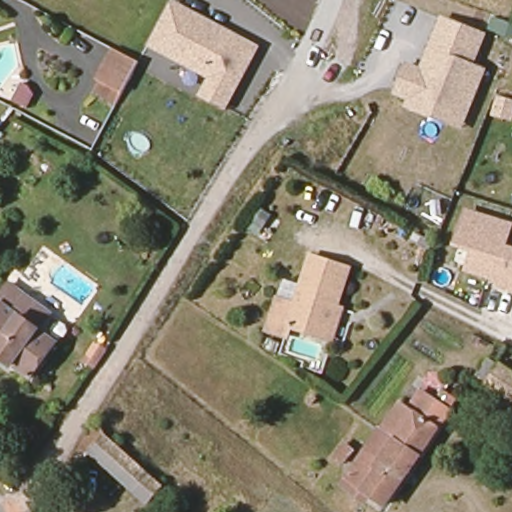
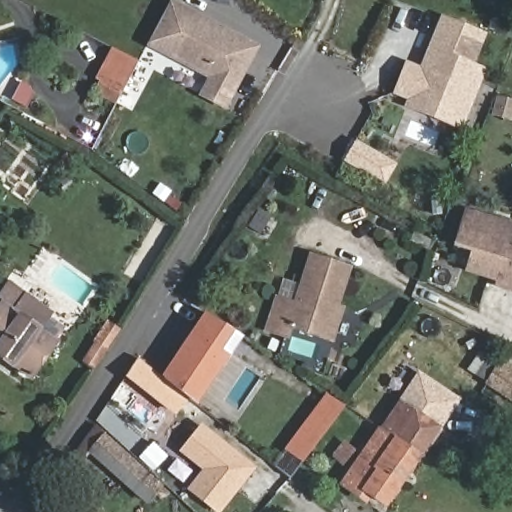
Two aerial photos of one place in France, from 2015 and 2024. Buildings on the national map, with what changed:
unchanged [(225,108),(212,101),(221,83),(173,57),(149,45),(164,15),(170,3),(184,10),(257,48),(225,108)]
unchanged [(410,102),(413,95),(399,89),(409,61),(424,66),(443,14),(484,29),(466,75),(479,80),(467,113),(463,122),(410,102)]
unchanged [(116,105),(96,94),(103,83),(98,80),(114,50),(139,64),(116,105)]
unchanged [(451,245),(463,206),(512,222),(512,232),(508,245),(512,246),(512,294),(494,289),(497,282),(463,272),(469,251),(451,245)]
unchanged [(331,342),(293,330),(290,336),(277,331),(286,303),(300,308),(317,260),(355,273),(331,342)]
unchanged [(16,371),(0,359),(0,303),(2,300),(12,286),(20,291),(29,298),(34,301),(51,315),(53,315),(44,330),(60,341),(34,378),(19,367),(16,371)]
new [(213,313),(248,337),(200,406),(167,380),(213,313)]
new [(114,325),(123,330),(108,351),(109,352),(97,370),(87,362),(99,345),(114,325)]
unchanged [(500,365),(512,373),(512,401),(487,384),(500,365)]
new [(325,393),(344,406),(301,466),(283,452),(325,393)]
unchanged [(388,430),(405,406),(417,415),(432,395),(442,402),(448,393),(457,400),(459,401),(423,454),(388,430)]
new [(215,512),(185,490),(201,470),(178,451),(200,423),(255,467),(221,512),(215,512)]
unchanged [(345,486),(352,476),(384,428),(388,430),(423,454),(391,502),(373,492),(366,501),(345,486)]
unchanged [(104,437),(161,486),(148,503),(90,453),(104,437)]

